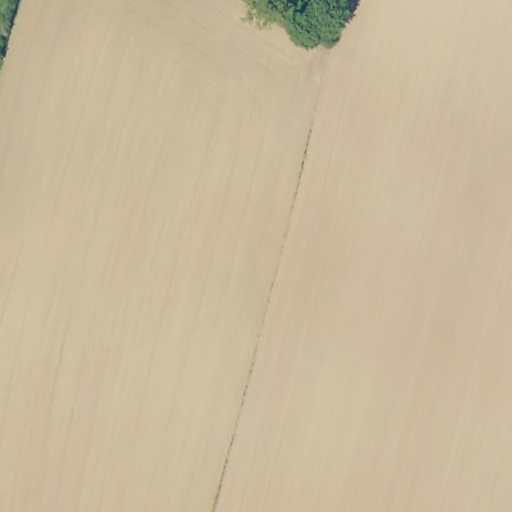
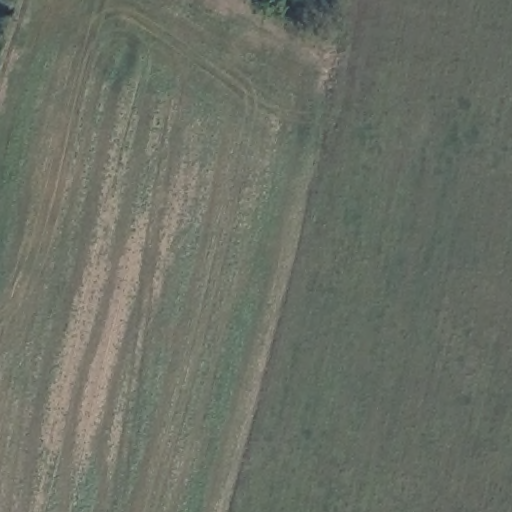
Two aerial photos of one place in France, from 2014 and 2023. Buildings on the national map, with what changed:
[]

